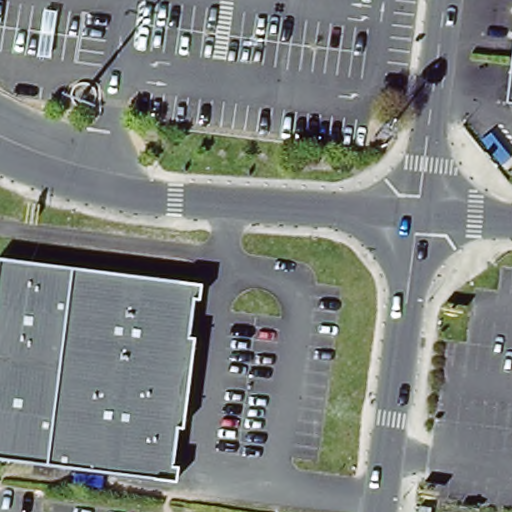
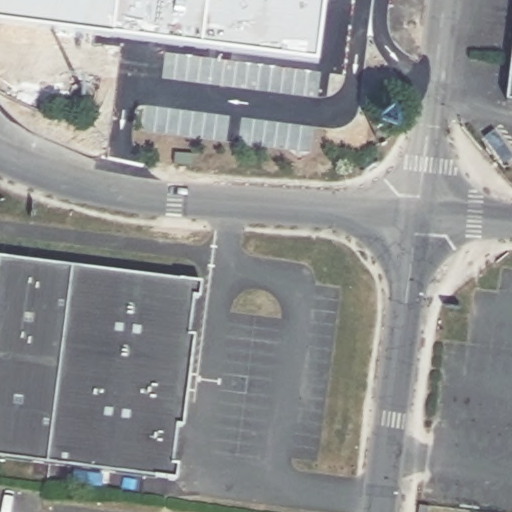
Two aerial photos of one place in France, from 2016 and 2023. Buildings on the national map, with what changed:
new [(0,28),(0,0),(331,0),(325,66),(0,28)]
unchanged [(508,105),(512,69),(512,105),(508,105)]
unchanged [(176,477),(0,456),(0,267),(2,255),(201,279),(176,477)]

